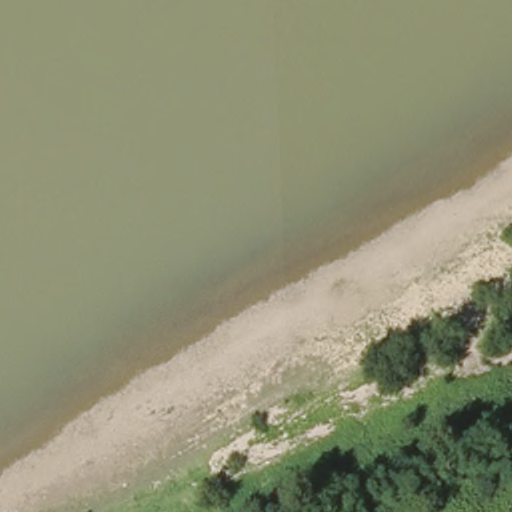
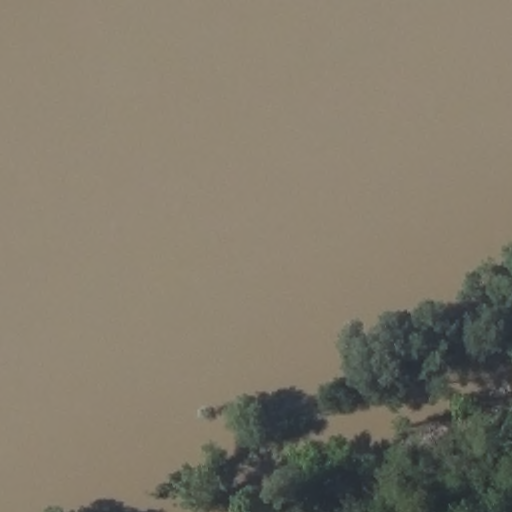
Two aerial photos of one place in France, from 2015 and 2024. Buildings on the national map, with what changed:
[]

